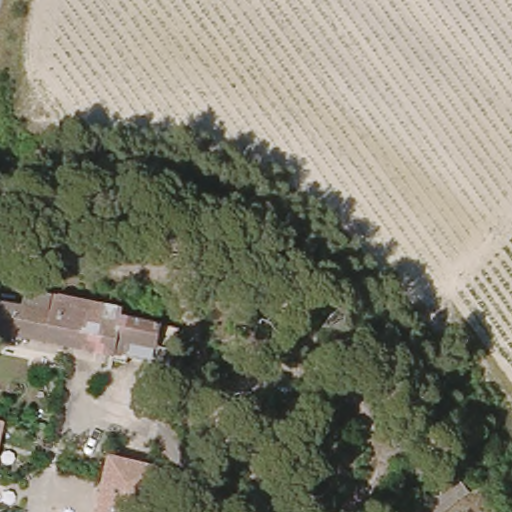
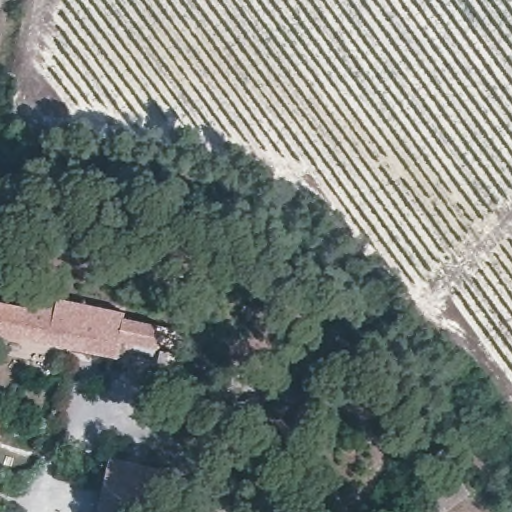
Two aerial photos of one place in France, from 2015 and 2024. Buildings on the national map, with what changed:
unchanged [(4,297),(32,303),(35,285),(59,290),(57,307),(61,308),(65,292),(131,304),(130,312),(170,319),(166,347),(185,350),(180,366),(138,358),(137,361),(115,356),(115,352),(0,328),(0,319),(4,297)]
unchanged [(8,419),(0,455),(0,417),(8,419)]
unchanged [(113,454),(153,463),(179,471),(172,500),(156,496),(152,512),(100,512),(113,454)]

